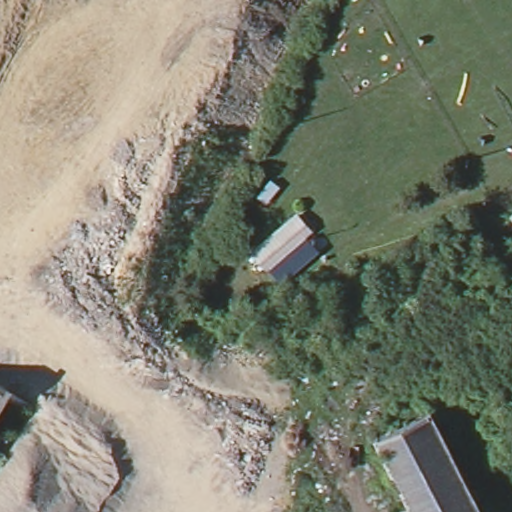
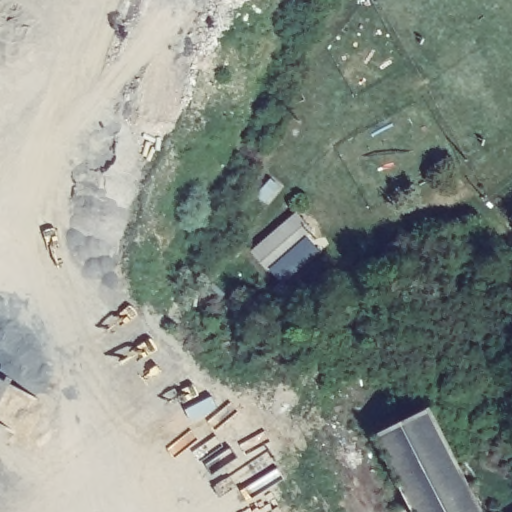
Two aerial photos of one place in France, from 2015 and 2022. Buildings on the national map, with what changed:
unchanged [(310,230),(265,268),(250,251),(297,211),(310,230)]
unchanged [(0,377),(38,398),(0,463),(0,377)]
unchanged [(411,512),(370,435),(420,408),(474,506),(460,512),(411,512)]
unchanged [(477,512),(460,512),(474,506),(477,512)]

